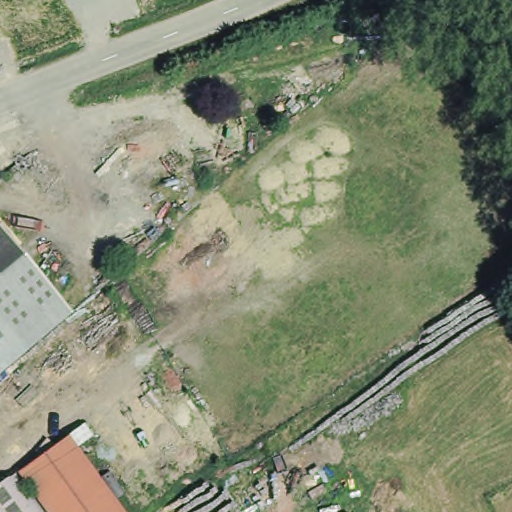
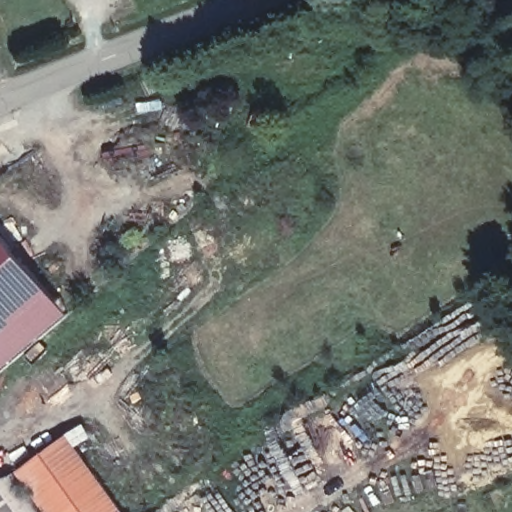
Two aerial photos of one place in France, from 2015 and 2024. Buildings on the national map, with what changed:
unchanged [(0,365),(0,219),(72,303),(39,332),(3,363),(0,365)]
unchanged [(128,512),(78,512),(37,457),(70,432),(128,512)]
unchanged [(78,512),(46,512),(17,472),(37,457),(78,512)]
unchanged [(0,512),(0,485),(17,472),(46,512),(0,512)]

